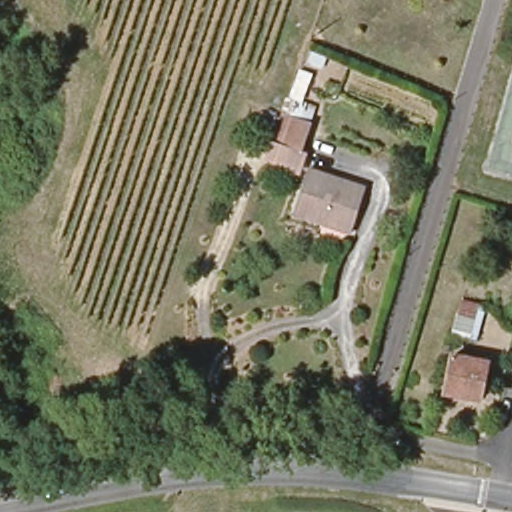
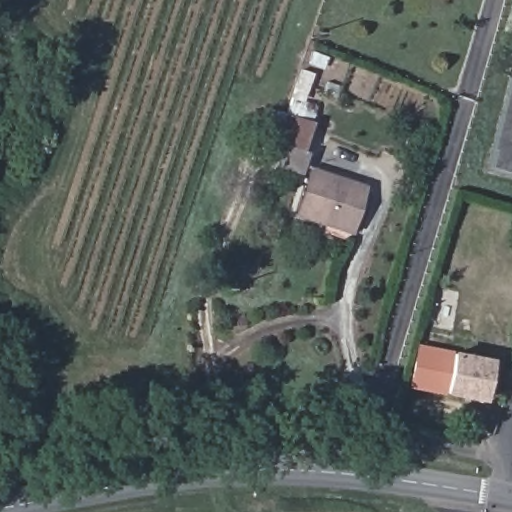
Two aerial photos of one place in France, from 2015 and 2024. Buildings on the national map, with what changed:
unchanged [(309,122),(299,152),(276,143),(286,114),(309,122)]
unchanged [(364,187),(348,233),(293,214),(308,167),(364,187)]
new [(445,392),(446,395),(407,388),(416,344),(453,351),(452,355),(445,392)]
unchanged [(487,362),(479,400),(445,392),(452,355),(487,362)]

